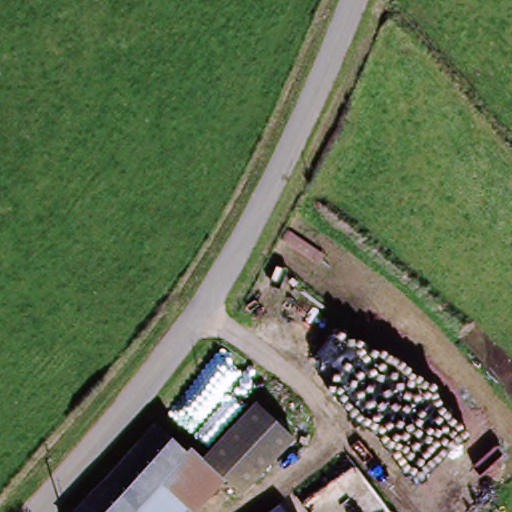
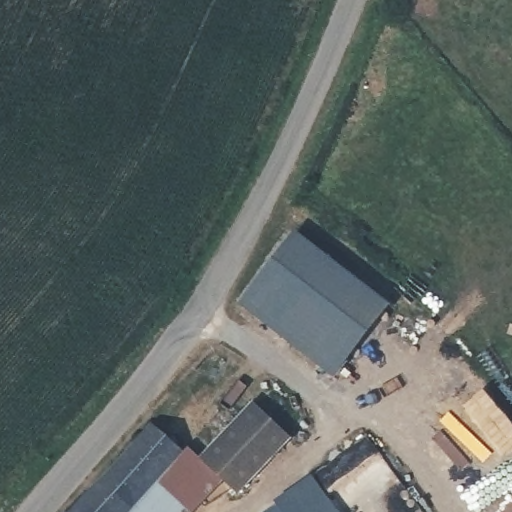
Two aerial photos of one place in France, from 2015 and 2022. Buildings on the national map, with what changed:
new [(294,249),(390,319),(348,377),(251,306),(294,249)]
unchanged [(216,480),(203,467),(254,412),(290,445),(238,500),(216,480)]
unchanged [(185,461),(139,512),(80,512),(152,431),(185,461)]
unchanged [(203,467),(216,480),(187,512),(139,512),(185,461),(189,456),(203,467)]
unchanged [(285,512),(270,512),(280,505),(285,512)]

